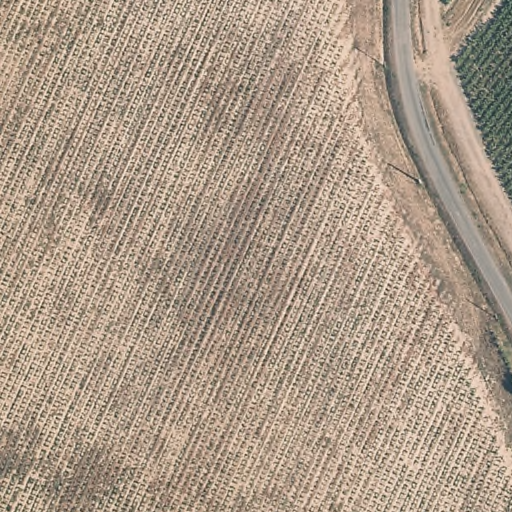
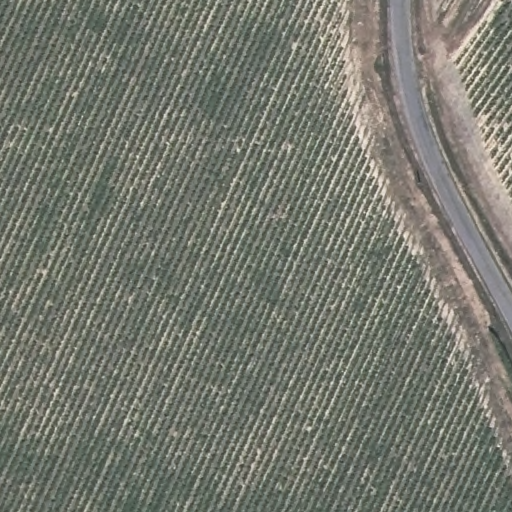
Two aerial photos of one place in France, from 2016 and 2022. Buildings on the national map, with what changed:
[]

